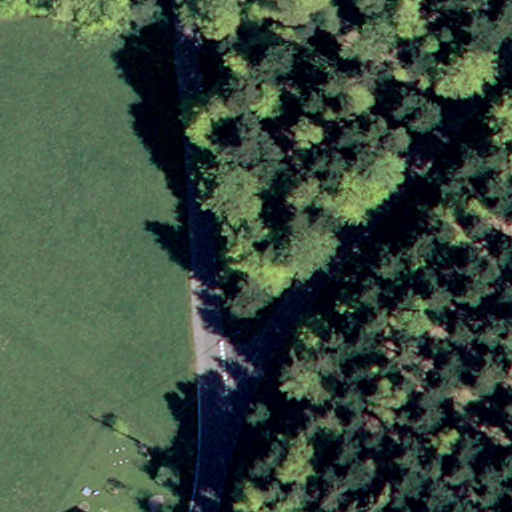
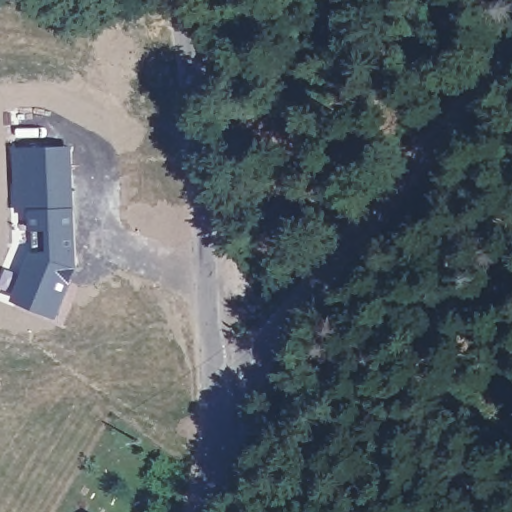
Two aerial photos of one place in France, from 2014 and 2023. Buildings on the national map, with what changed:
new [(67,149),(67,170),(71,269),(62,269),(60,277),(65,284),(51,317),(12,300),(30,254),(28,212),(14,213),(12,184),(11,151),(47,150),(67,149)]

